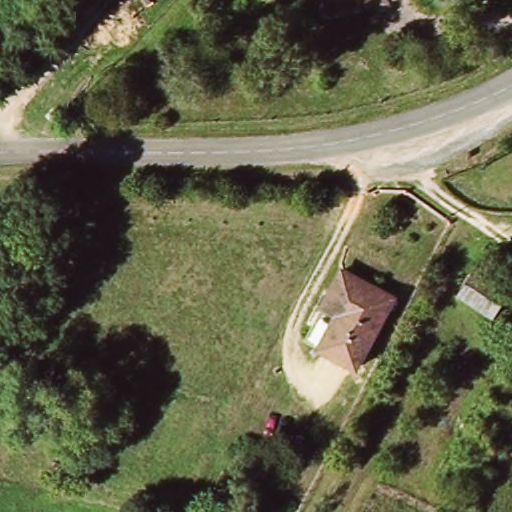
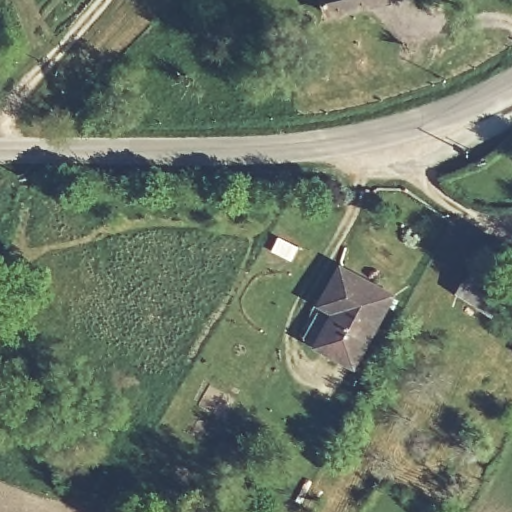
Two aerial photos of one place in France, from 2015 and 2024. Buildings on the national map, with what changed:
unchanged [(389,4),(326,17),(323,0),(391,0),(389,1),(389,4)]
unchanged [(364,357),(315,330),(343,280),(392,306),(364,357)]
unchanged [(445,303),(457,280),(493,298),(482,323),(445,303)]

